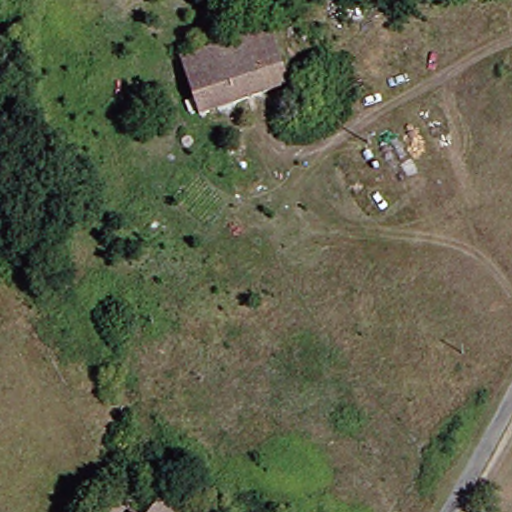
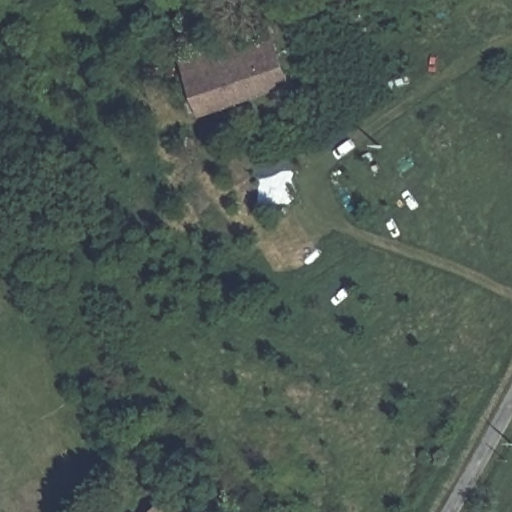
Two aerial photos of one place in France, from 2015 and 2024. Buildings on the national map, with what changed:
unchanged [(200,115),(185,59),(236,42),(232,24),(255,20),(258,31),(276,30),(281,50),(290,74),(296,91),(200,115)]
unchanged [(191,507),(185,512),(153,512),(183,490),(191,507)]

